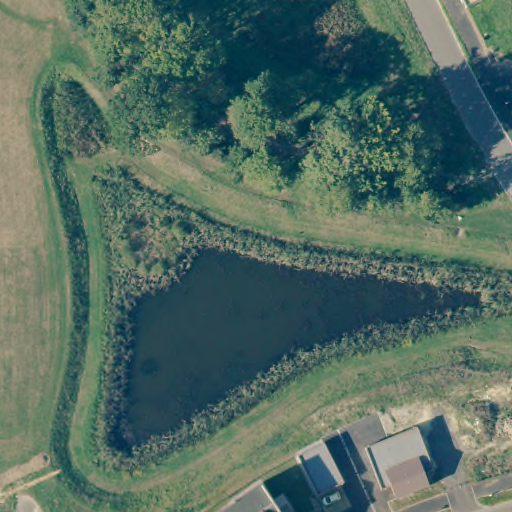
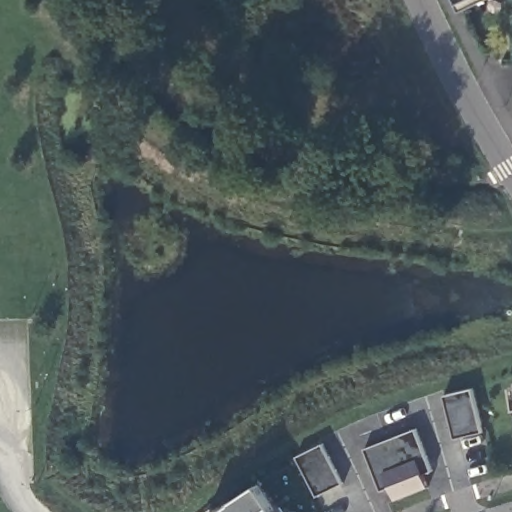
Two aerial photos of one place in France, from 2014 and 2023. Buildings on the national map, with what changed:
unchanged [(482,0),(464,9),(460,0),(482,0)]
new [(473,388),(484,433),(457,439),(444,395),(473,388)]
unchanged [(364,449),(414,430),(431,472),(424,474),(428,486),(395,498),(391,490),(381,493),(364,449)]
unchanged [(299,457),(322,445),(341,482),(316,496),(299,457)]
unchanged [(259,485),(276,511),(284,505),(289,512),(219,512),(259,485)]

